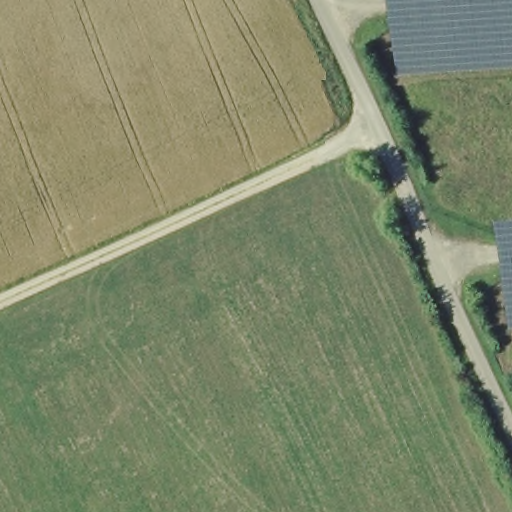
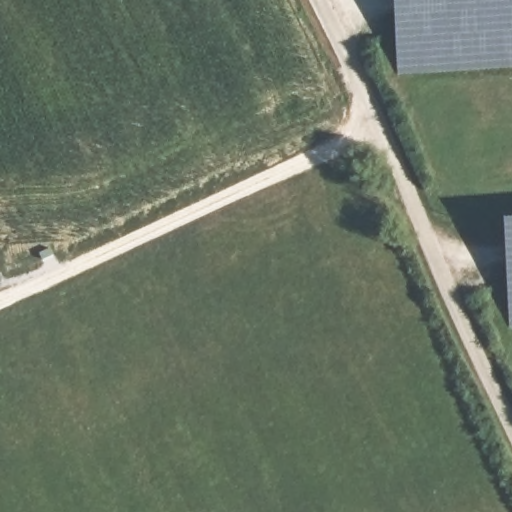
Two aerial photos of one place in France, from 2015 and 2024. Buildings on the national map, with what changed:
unchanged [(392,0),(512,0),(512,62),(398,68),(392,0)]
unchanged [(512,323),(508,323),(501,218),(512,217),(512,323)]

